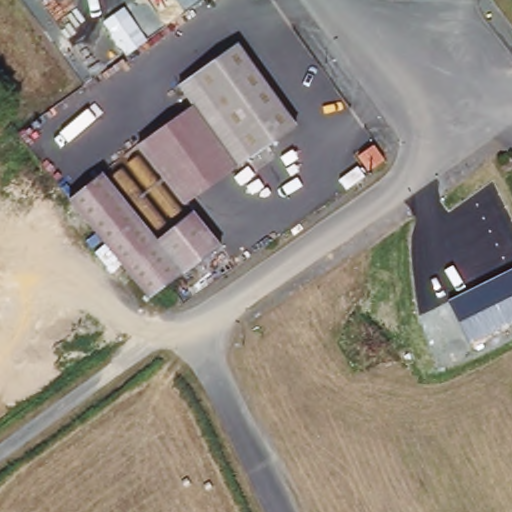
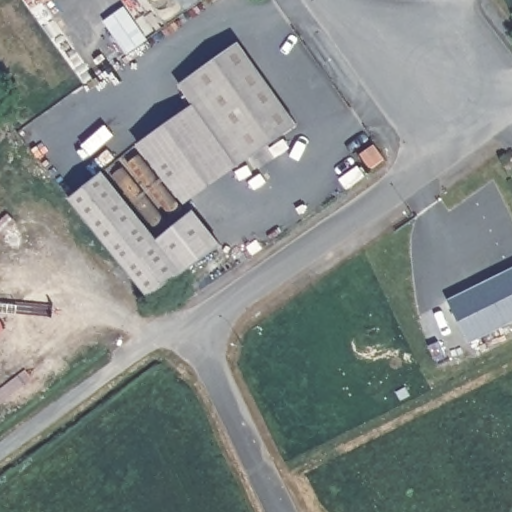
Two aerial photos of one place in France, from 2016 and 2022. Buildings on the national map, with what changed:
unchanged [(137,143),(192,104),(179,85),(239,41),(298,121),(236,166),(182,205),(137,143)]
unchanged [(377,141),(387,154),(375,163),(367,150),(377,141)]
unchanged [(69,198),(102,170),(157,239),(195,211),(220,244),(181,272),(148,296),(69,198)]
unchanged [(512,268),(512,322),(468,344),(447,299),(512,268)]

